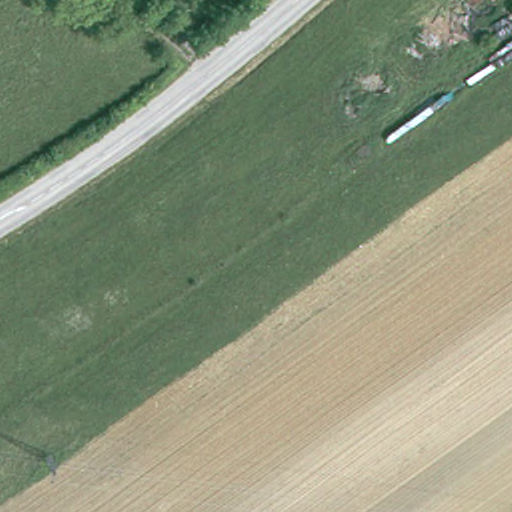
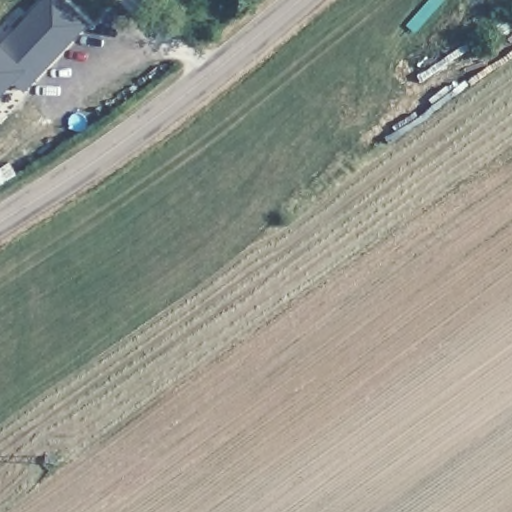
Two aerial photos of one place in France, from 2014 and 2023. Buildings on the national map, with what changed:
new [(0,41),(40,0),(66,0),(89,22),(24,91),(13,80),(0,94),(0,41)]

